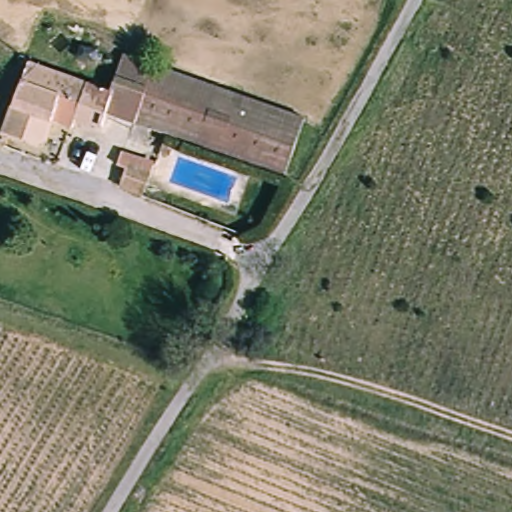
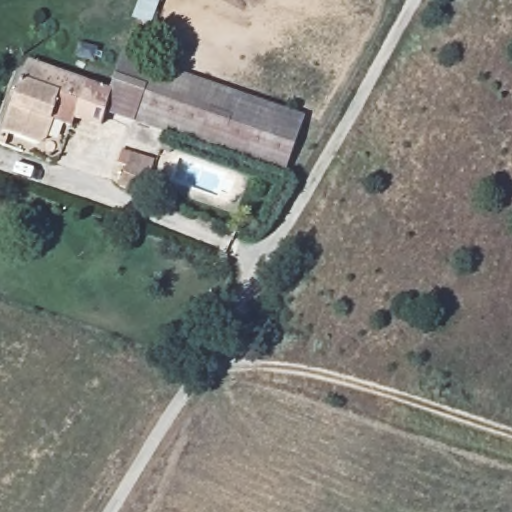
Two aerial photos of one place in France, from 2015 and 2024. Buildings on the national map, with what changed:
unchanged [(112,86),(122,46),(305,108),(283,175),(103,116),(112,86)]
unchanged [(55,123),(40,141),(8,132),(3,146),(0,146),(0,128),(24,56),(112,86),(103,116),(95,127),(55,123)]
unchanged [(115,196),(125,161),(151,164),(140,199),(115,196)]

